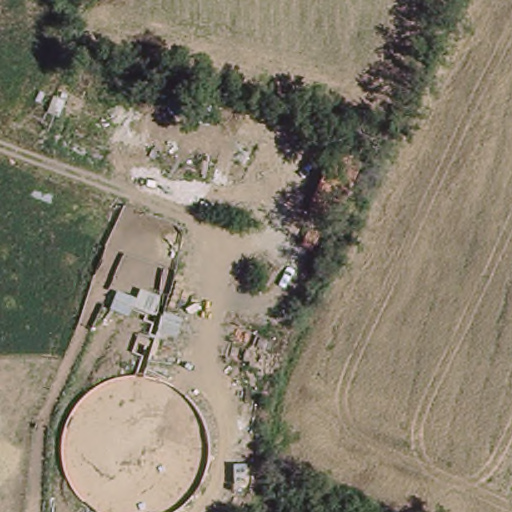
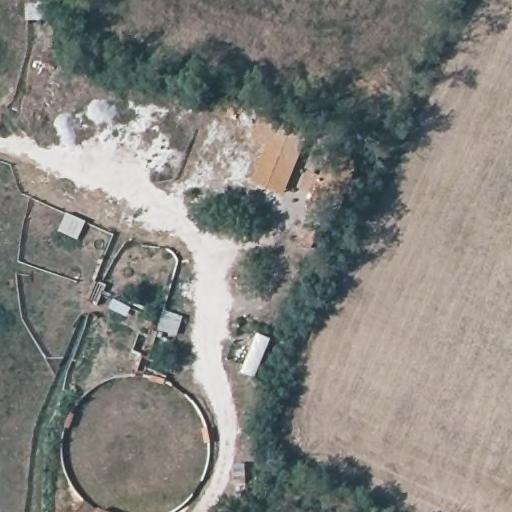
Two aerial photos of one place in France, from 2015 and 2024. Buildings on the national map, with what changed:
new [(263,146),(250,140),(260,116),(307,132),(285,198),(253,184),(263,146)]
unchanged [(322,190),(336,152),(360,161),(344,199),(322,190)]
unchanged [(155,315),(134,305),(129,317),(110,309),(117,291),(137,298),(141,287),(162,296),(155,315)]
unchanged [(178,338),(157,333),(164,311),(183,319),(178,338)]

